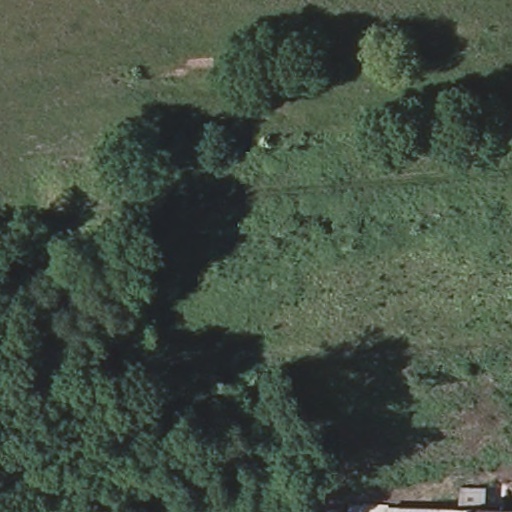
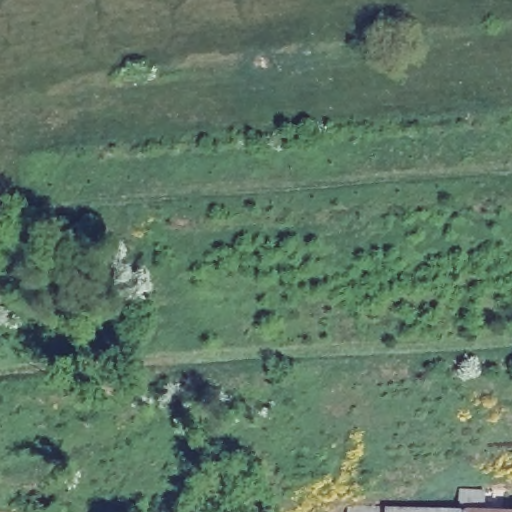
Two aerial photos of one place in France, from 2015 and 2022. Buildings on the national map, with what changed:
unchanged [(348,507),(393,509),(457,511),(457,494),(457,489),(485,490),(485,491),(484,512),(348,512),(348,507)]

